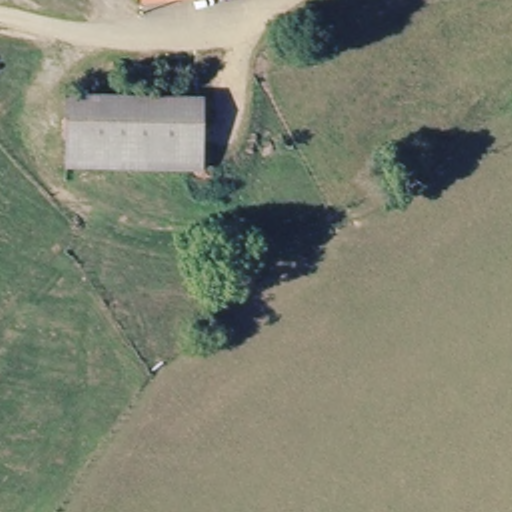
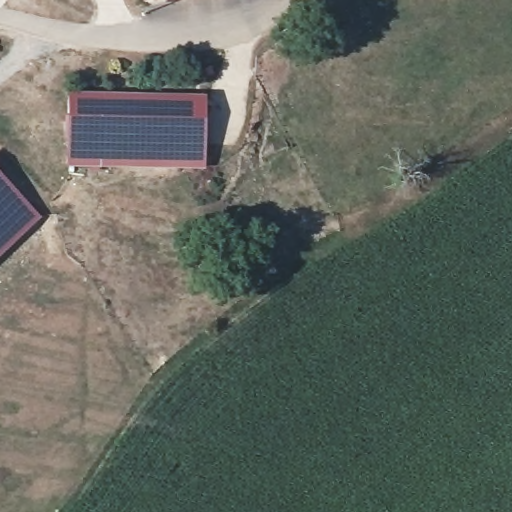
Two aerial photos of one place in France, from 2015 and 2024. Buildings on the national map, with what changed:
unchanged [(64,110),(198,93),(209,160),(74,177),(64,110)]
new [(41,217),(0,257),(0,172),(41,217)]

